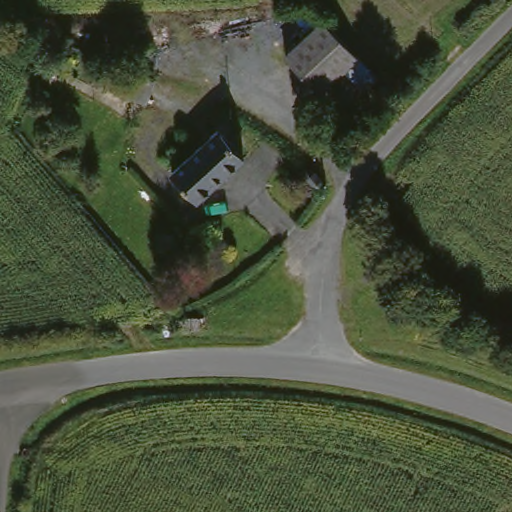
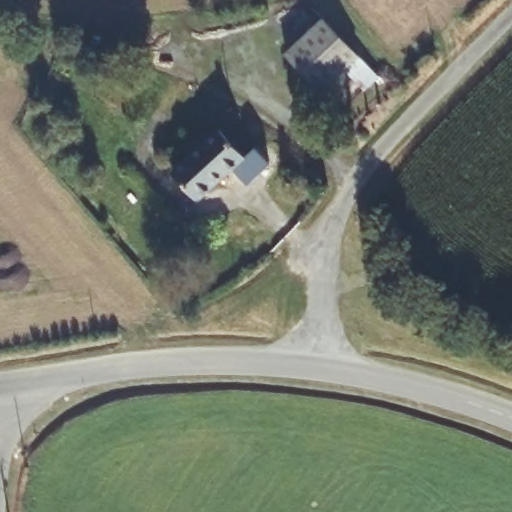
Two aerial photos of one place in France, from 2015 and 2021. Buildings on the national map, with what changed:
unchanged [(368,87),(351,68),(326,89),(292,51),(332,16),(366,53),(383,72),(368,87)]
unchanged [(156,80),(145,102),(110,84),(121,62),(156,80)]
unchanged [(221,128),(245,154),(200,196),(174,170),(221,128)]

